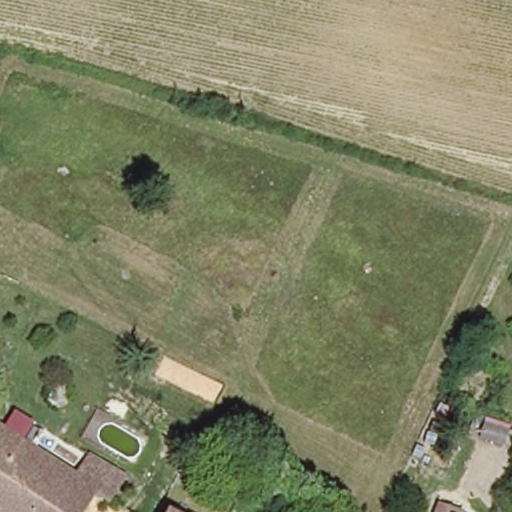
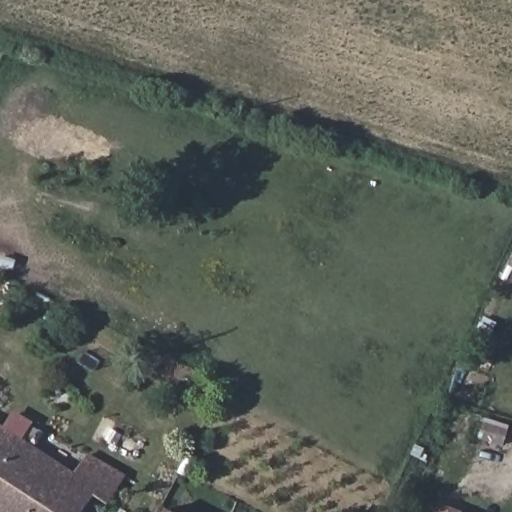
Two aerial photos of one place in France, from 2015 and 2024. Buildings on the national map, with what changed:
unchanged [(93,454),(136,482),(122,503),(99,487),(86,505),(82,503),(75,512),(0,512),(0,423),(78,473),(93,454)]
unchanged [(437,505),(460,512),(435,512),(437,505)]
unchanged [(167,511),(169,512),(167,512),(167,511)]

